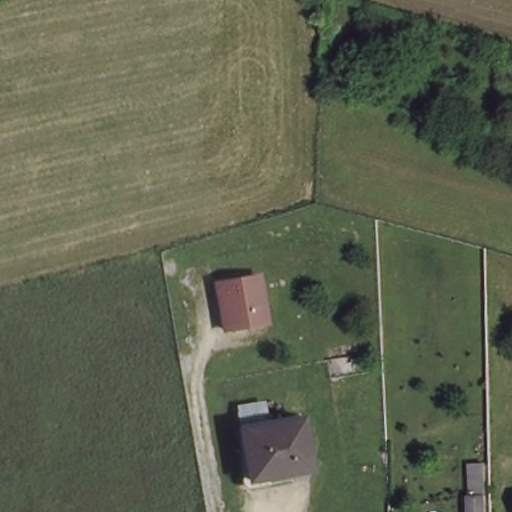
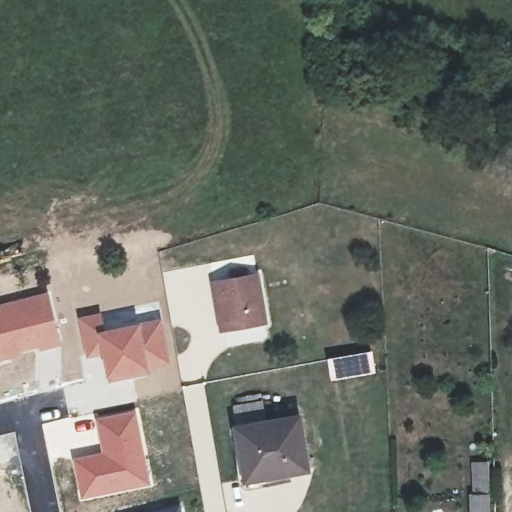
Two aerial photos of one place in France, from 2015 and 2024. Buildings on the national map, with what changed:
unchanged [(223,331),(214,279),(262,271),(271,324),(223,331)]
new [(62,345),(30,351),(0,360),(0,303),(49,290),(62,345)]
new [(172,365),(152,370),(152,373),(107,382),(102,355),(86,358),(78,316),(101,312),(105,328),(163,317),(172,365)]
unchanged [(235,406),(261,401),(264,422),(299,416),(308,468),(245,479),(237,427),(238,426),(235,406)]
new [(101,451),(95,417),(138,408),(152,485),(80,500),(72,458),(101,451)]
unchanged [(472,512),(471,495),(475,495),(474,462),(487,462),(487,494),(488,512),(472,512)]
new [(182,512),(142,512),(180,503),(182,512)]

